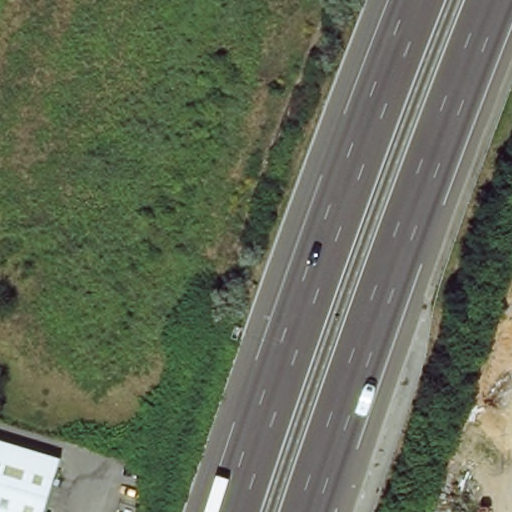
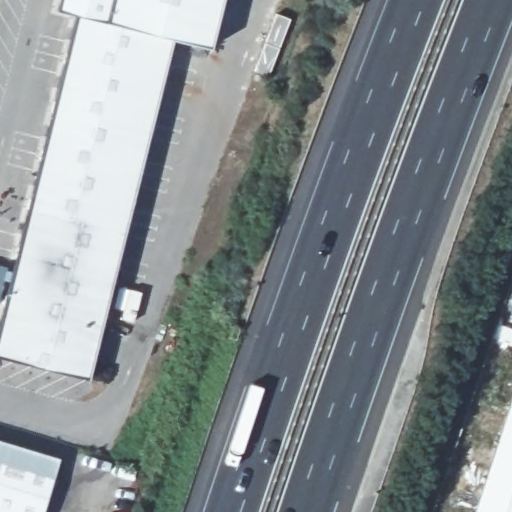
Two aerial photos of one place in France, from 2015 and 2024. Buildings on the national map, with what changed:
new [(77,15),(57,10),(59,0),(219,0),(206,49),(170,39),(87,379),(0,359),(0,321),(77,15)]
new [(512,388),(512,512),(472,512),(499,427),(512,388)]
unchanged [(53,454),(38,512),(0,512),(0,438),(53,454)]

